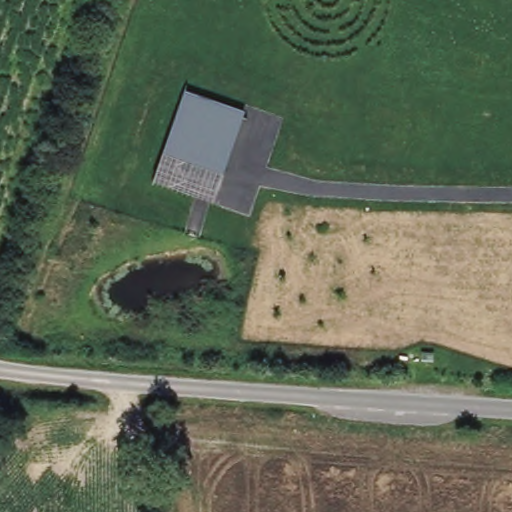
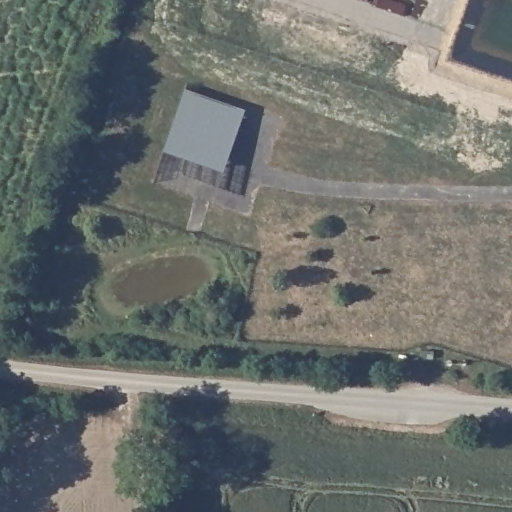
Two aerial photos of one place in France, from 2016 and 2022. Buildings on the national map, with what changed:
unchanged [(187,90),(246,111),(215,201),(155,180),(187,90)]

